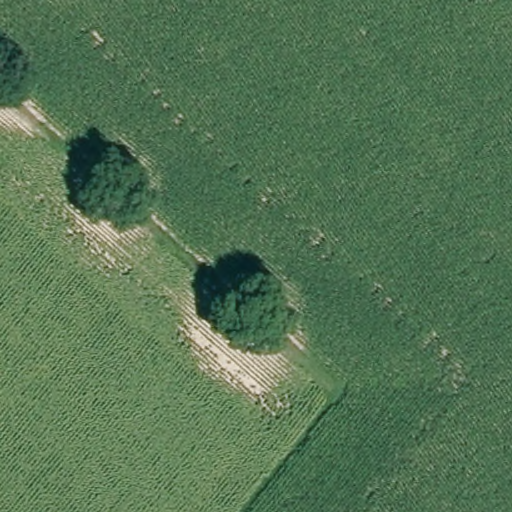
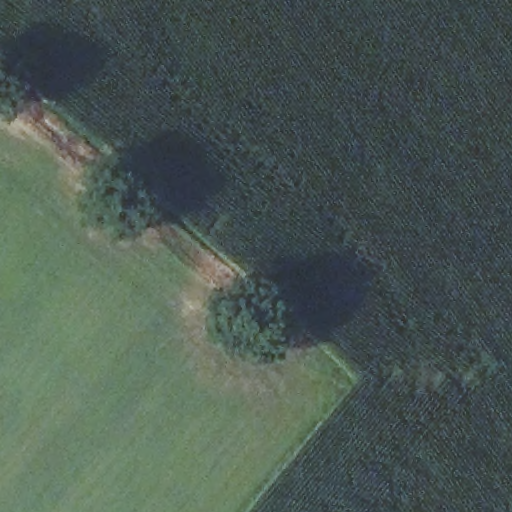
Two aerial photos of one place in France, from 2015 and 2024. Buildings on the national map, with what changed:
[]

